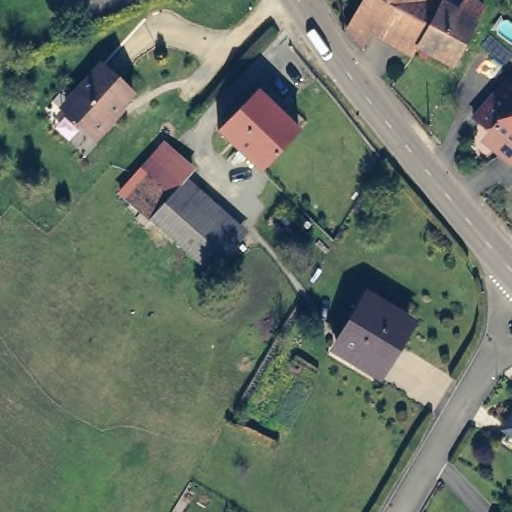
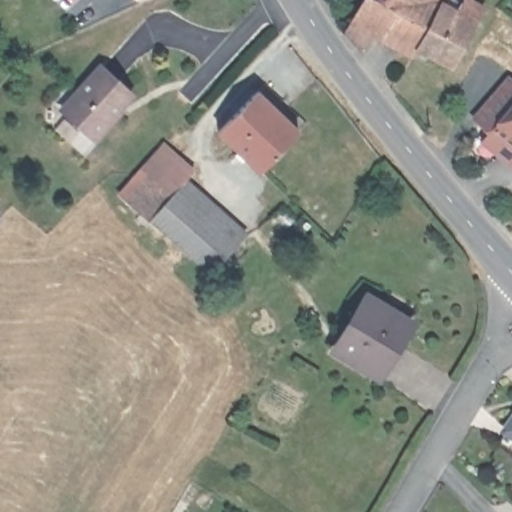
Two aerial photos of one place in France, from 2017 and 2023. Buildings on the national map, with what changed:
unchanged [(356,20),(368,0),(452,0),(445,11),(459,20),(469,5),(486,15),(451,74),(379,32),(361,50),(348,35),(356,20)]
unchanged [(78,96),(104,67),(136,96),(113,121),(115,124),(98,142),(68,117),(63,113),(78,96)]
unchanged [(512,153),(477,121),(512,86),(512,153)]
unchanged [(253,97),(292,134),(256,172),(217,135),(253,97)]
unchanged [(119,194),(163,141),(176,152),(191,165),(176,182),(238,236),(213,269),(166,229),(150,215),(119,194)]
unchanged [(363,305),(404,330),(374,380),(333,355),(363,305)]
unchanged [(512,438),(509,436),(512,431),(512,438)]

